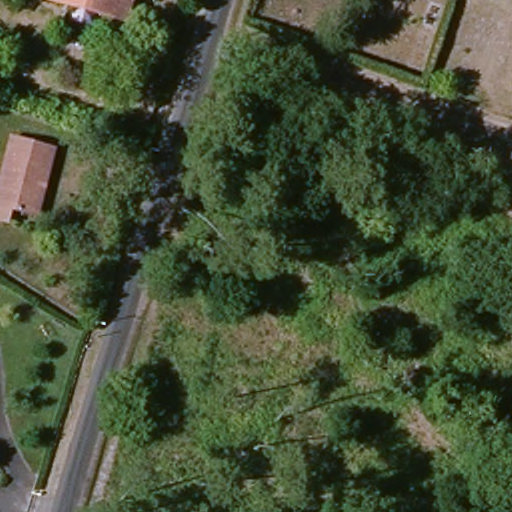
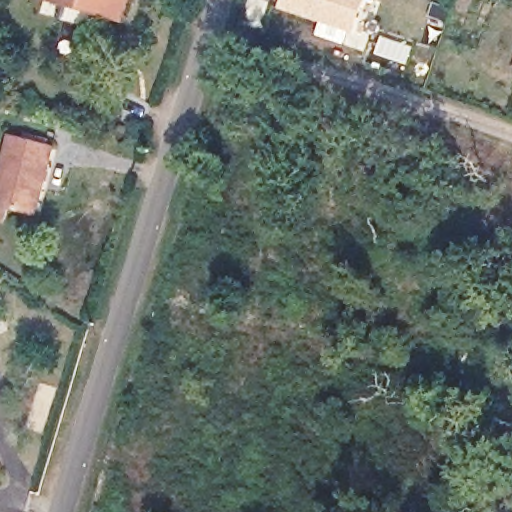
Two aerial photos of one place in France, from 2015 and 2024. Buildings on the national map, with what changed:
unchanged [(47,3),(48,0),(130,0),(123,25),(99,18),(66,9),(47,3)]
new [(279,0),(363,0),(348,41),(351,42),(350,46),(314,34),(318,22),(276,8),(279,0)]
new [(380,36),(410,46),(404,64),(373,53),(380,36)]
unchanged [(0,220),(0,185),(12,138),(53,148),(42,192),(36,215),(32,214),(10,209),(7,221),(0,220)]

